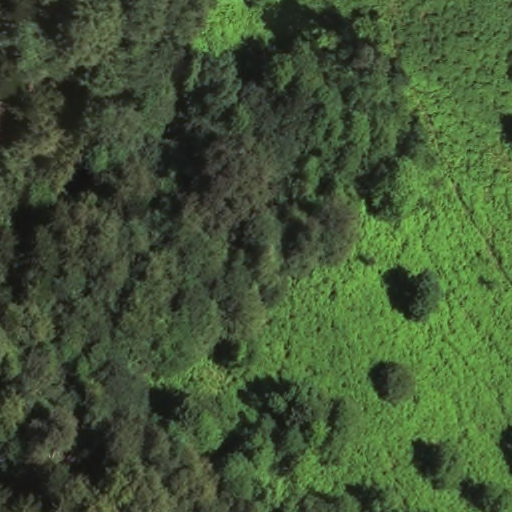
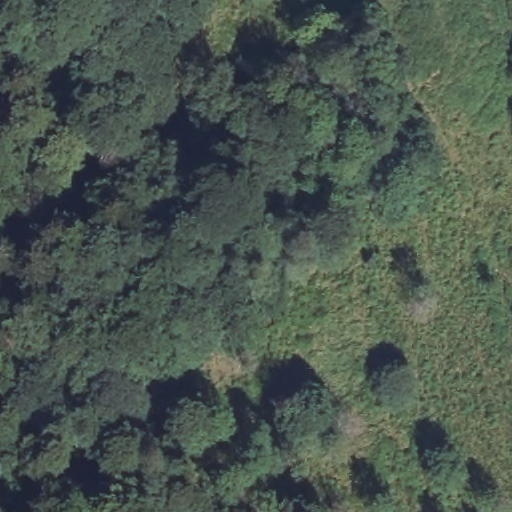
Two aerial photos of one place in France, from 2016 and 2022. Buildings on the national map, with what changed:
[]

